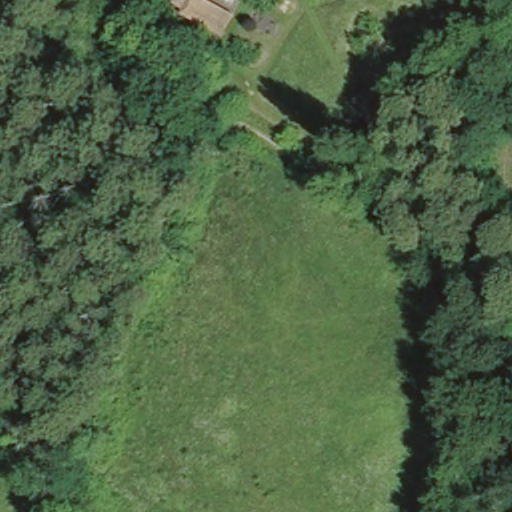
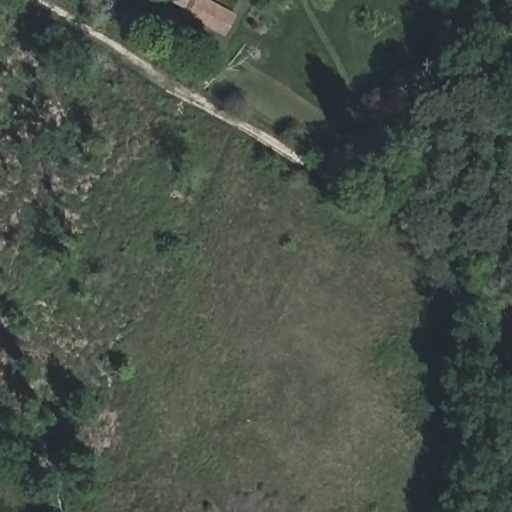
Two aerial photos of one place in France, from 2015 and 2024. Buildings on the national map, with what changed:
unchanged [(207,1),(230,15),(224,35),(179,14),(182,6),(169,0),(207,0),(207,1)]

